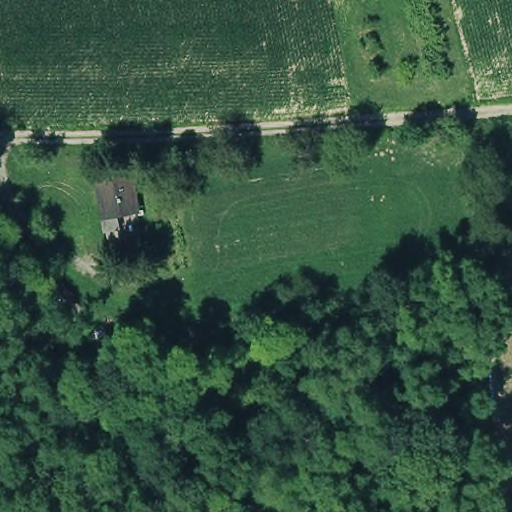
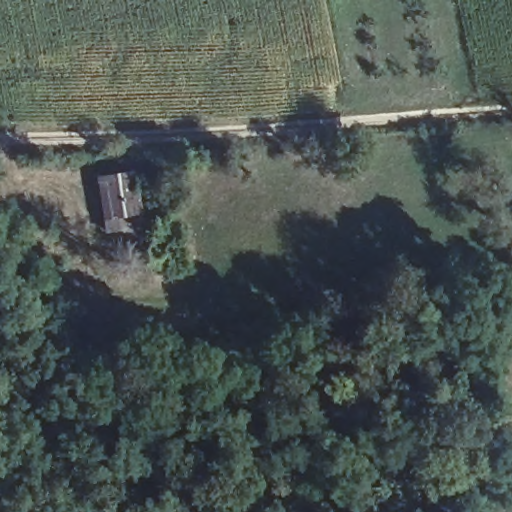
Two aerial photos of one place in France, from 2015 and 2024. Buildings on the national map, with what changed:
unchanged [(136,170),(142,210),(107,215),(101,175),(136,170)]
unchanged [(77,297),(75,300),(100,325),(90,335),(64,310),(61,312),(49,298),(61,281),(77,297)]

